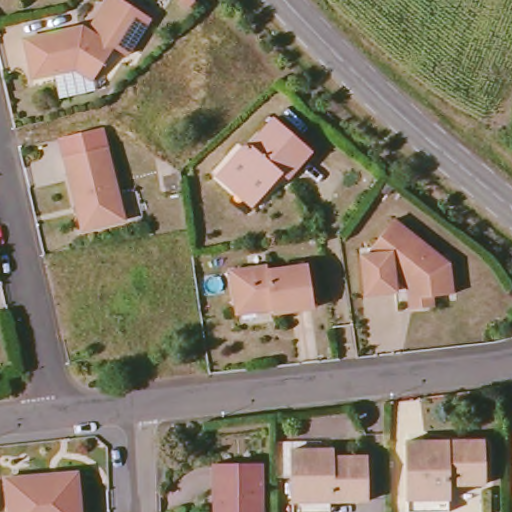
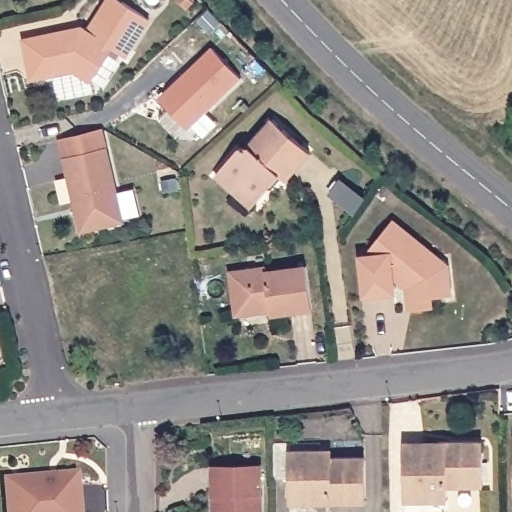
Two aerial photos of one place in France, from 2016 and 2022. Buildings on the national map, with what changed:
unchanged [(55,35),(68,32),(83,29),(88,34),(108,0),(117,0),(151,22),(124,64),(111,56),(92,85),(77,76),(78,73),(31,83),(23,42),(55,35)]
new [(242,80),(187,130),(157,99),(211,47),(242,80)]
unchanged [(234,192),(215,176),(241,148),(249,147),(274,119),(310,152),(286,180),(277,172),(268,182),(268,189),(258,200),(251,208),(234,192)]
unchanged [(82,231),(64,158),(60,141),(102,131),(106,148),(124,221),(82,231)]
unchanged [(177,173),(180,191),(164,193),(161,175),(177,173)]
unchanged [(416,316),(415,306),(412,276),(407,272),(398,273),(401,299),(370,302),(366,261),(375,260),(373,256),(398,225),(445,262),(444,271),(455,269),(459,301),(438,303),(439,314),(416,316)]
unchanged [(267,267),(268,272),(307,267),(313,310),(271,315),(270,306),(259,308),(259,313),(236,316),(230,272),(267,267)]
unchanged [(407,441),(483,440),(483,486),(448,487),(448,501),(448,512),(407,512),(407,501),(407,441)]
unchanged [(292,478),(276,478),(275,443),(291,442),(291,450),(314,449),(332,449),(332,456),(366,456),(366,502),(330,503),(330,512),(292,512),(292,504),(292,478)]
unchanged [(262,512),(215,512),(214,464),(261,464),(262,512)]
unchanged [(77,473),(80,512),(8,512),(5,479),(77,473)]

